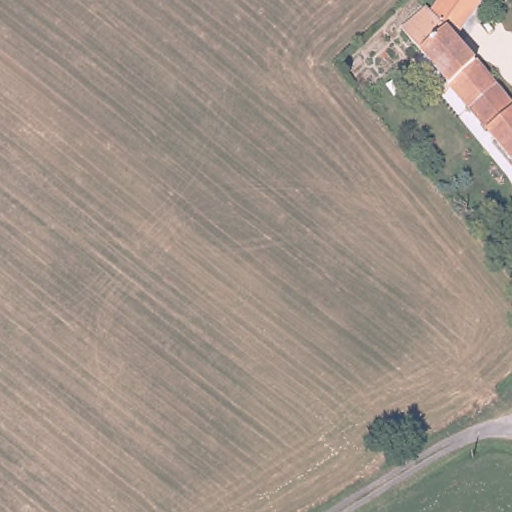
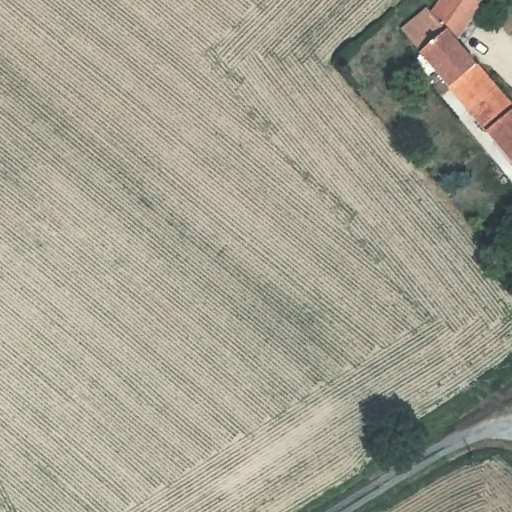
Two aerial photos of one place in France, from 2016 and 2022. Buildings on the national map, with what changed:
unchanged [(474,112),(441,76),(431,84),(416,67),(426,59),(405,34),(431,12),(436,16),(447,0),(482,0),(490,8),(475,22),(481,29),(463,47),(500,89),(474,112)]
unchanged [(512,157),(474,112),(500,89),(512,103),(512,157)]

